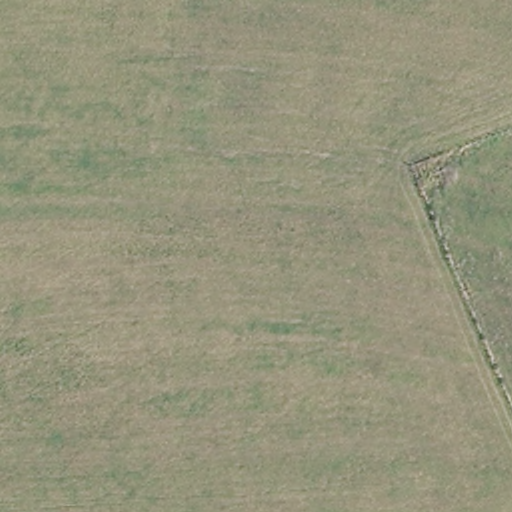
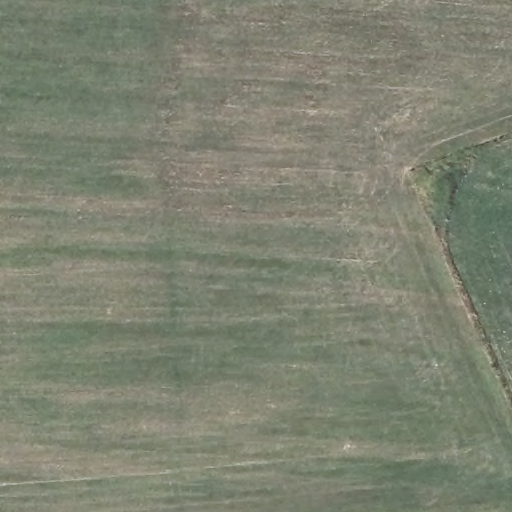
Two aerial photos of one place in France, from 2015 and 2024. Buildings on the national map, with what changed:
[]

